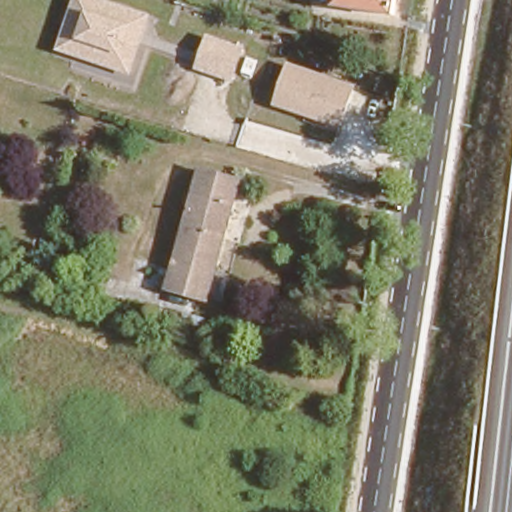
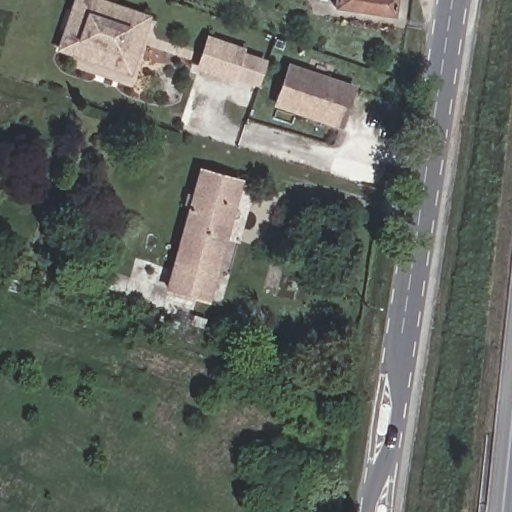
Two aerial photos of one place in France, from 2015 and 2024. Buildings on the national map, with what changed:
unchanged [(132,74),(56,50),(74,0),(104,0),(152,15),(132,74)]
unchanged [(333,4),(334,0),(393,0),(391,14),(333,4)]
unchanged [(235,82),(197,69),(207,35),(246,47),(235,82)]
unchanged [(342,129),(275,106),(290,62),(359,85),(342,129)]
unchanged [(215,270),(205,267),(197,297),(167,288),(200,171),(240,182),(215,270)]

